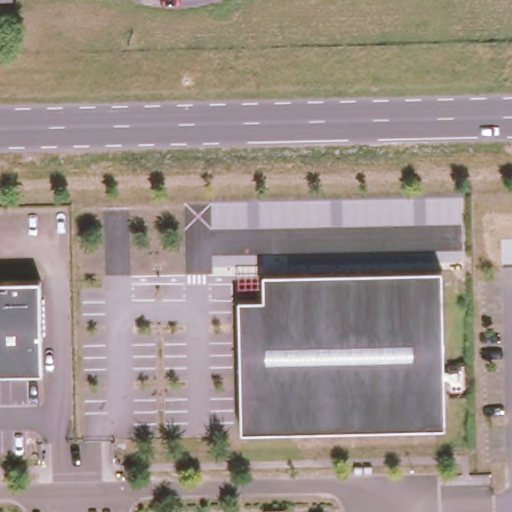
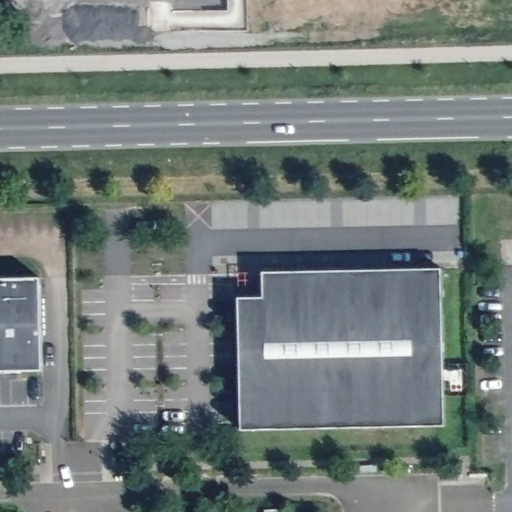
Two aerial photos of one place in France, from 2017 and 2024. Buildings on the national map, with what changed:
unchanged [(265,298),(265,272),(442,271),(446,427),(243,432),(240,298),(265,298)]
unchanged [(0,370),(0,281),(43,280),(45,370),(0,370)]

